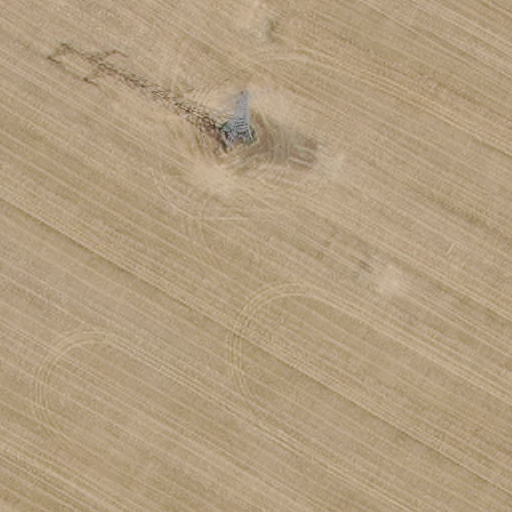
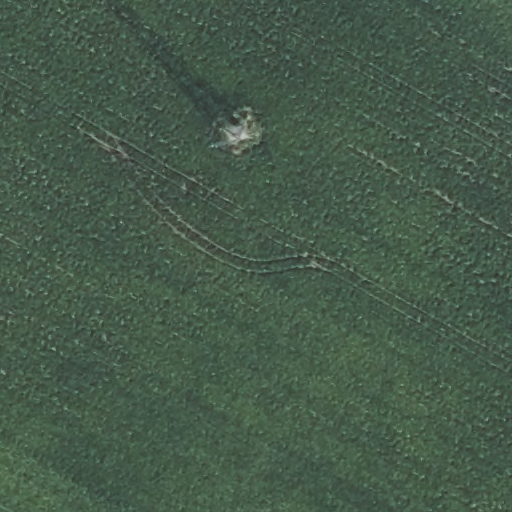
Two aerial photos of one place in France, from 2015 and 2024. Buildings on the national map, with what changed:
[]

